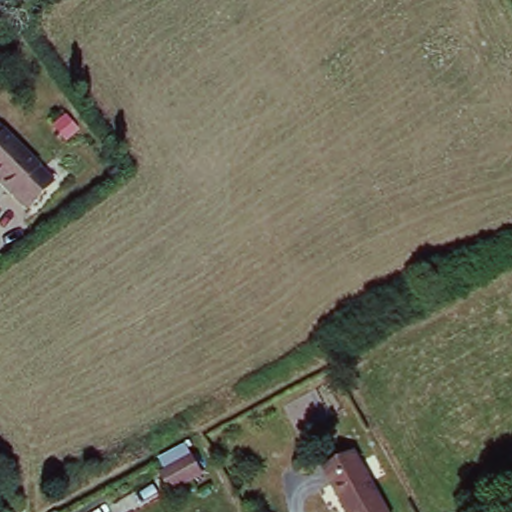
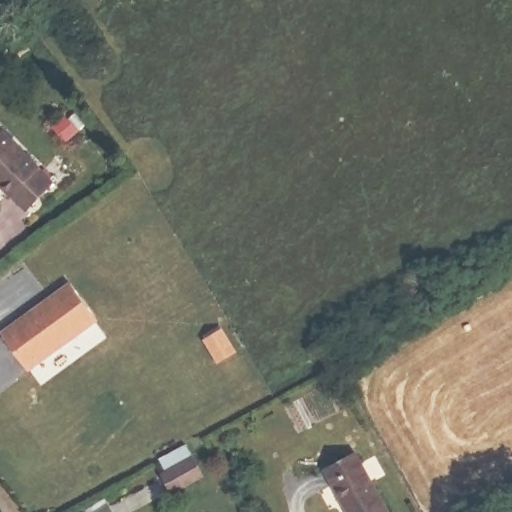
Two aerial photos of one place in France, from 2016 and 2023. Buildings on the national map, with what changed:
unchanged [(29,211),(5,185),(0,191),(0,132),(55,185),(29,211)]
new [(0,338),(71,285),(98,322),(28,376),(0,340),(0,338)]
unchanged [(154,478),(160,474),(153,460),(185,442),(207,481),(167,501),(154,478)]
unchanged [(347,512),(323,467),(353,451),(387,512),(347,512)]

